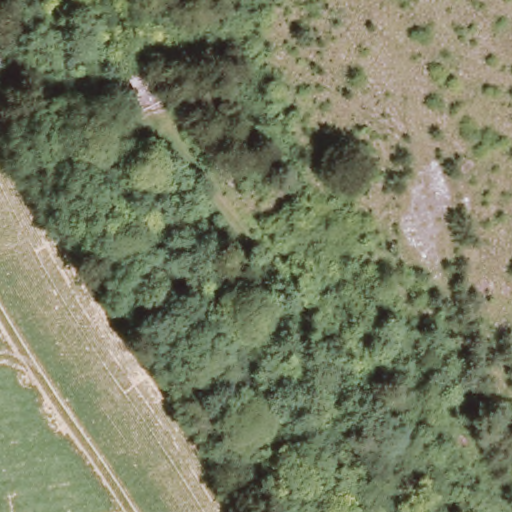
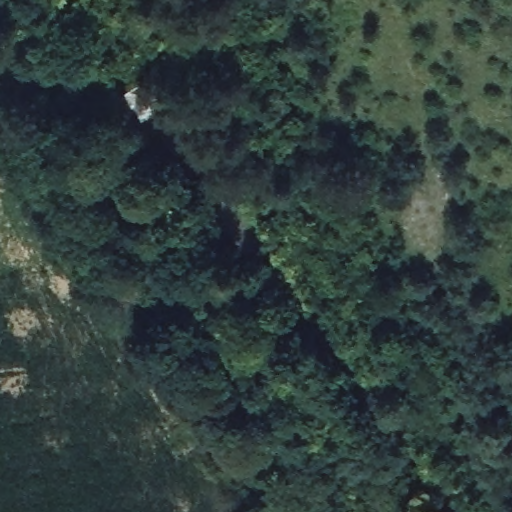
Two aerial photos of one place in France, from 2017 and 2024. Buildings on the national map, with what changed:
unchanged [(148,76),(162,105),(143,114),(128,86),(148,76)]

